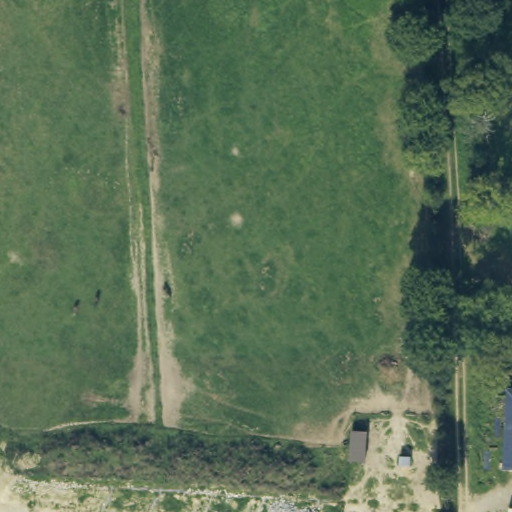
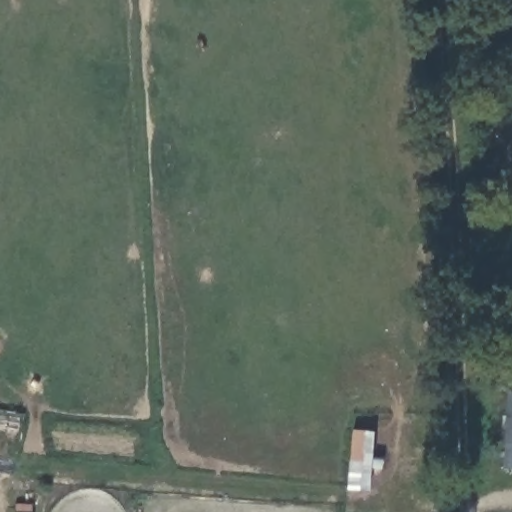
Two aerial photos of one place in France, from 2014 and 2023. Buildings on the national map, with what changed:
unchanged [(512,391),(512,468),(504,468),(507,391),(512,391)]

